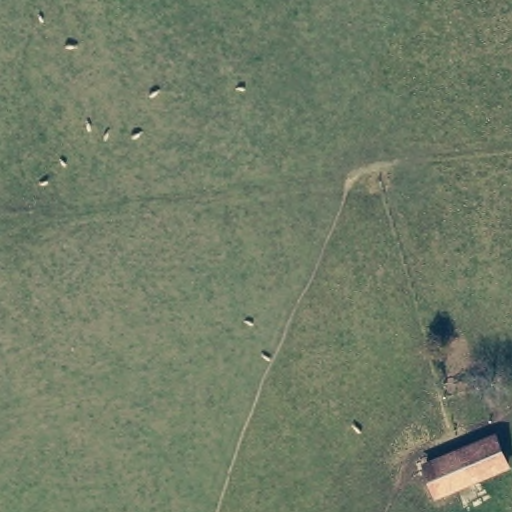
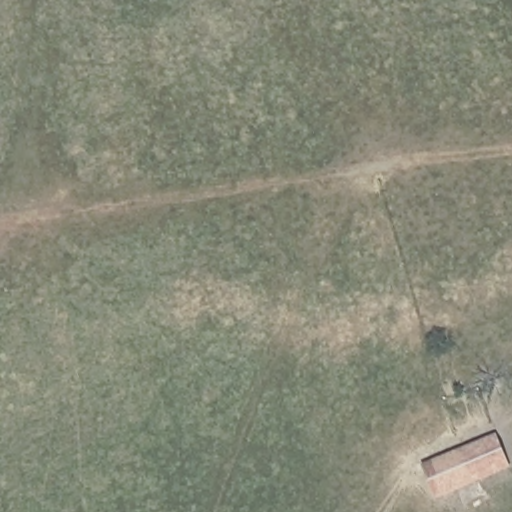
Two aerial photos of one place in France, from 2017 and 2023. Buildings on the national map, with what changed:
unchanged [(498,431),(512,467),(437,500),(424,463),(498,431)]

